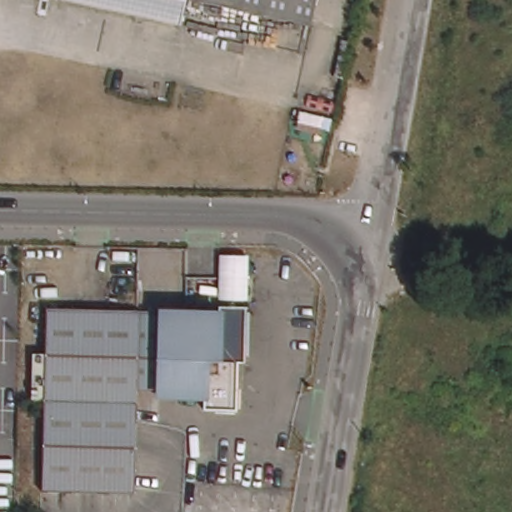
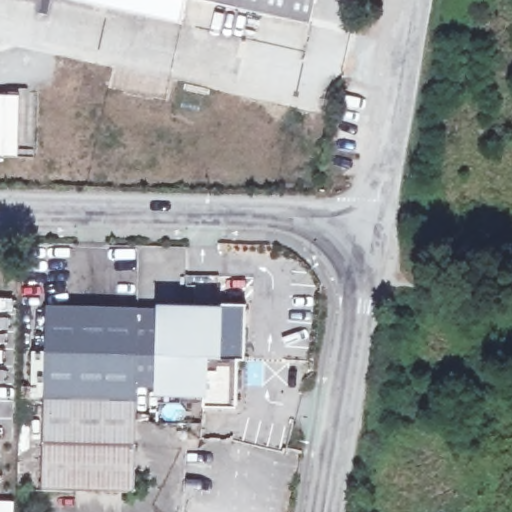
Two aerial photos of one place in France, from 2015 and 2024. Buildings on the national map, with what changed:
unchanged [(181,24),(76,0),(187,0),(181,24)]
unchanged [(312,25),(201,0),(316,0),(312,25)]
new [(20,94),(20,157),(0,157),(0,93),(20,94)]
unchanged [(219,281),(219,261),(220,242),(247,243),(247,262),(246,282),(246,292),(218,292),(219,281)]
unchanged [(40,486),(43,303),(158,306),(158,311),(184,312),(184,306),(218,308),(218,298),(246,299),(245,355),(240,355),(238,404),(202,403),(203,388),(157,387),(157,382),(135,381),(131,489),(40,486)]
new [(15,500),(15,512),(0,512),(0,500),(15,500)]

